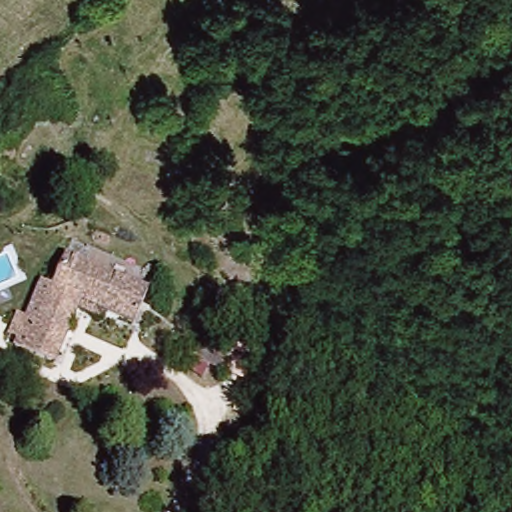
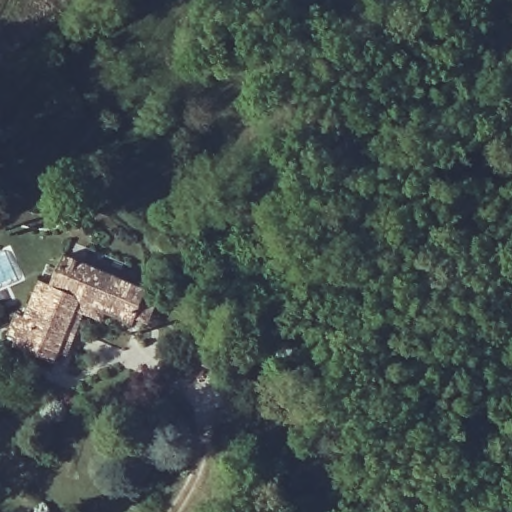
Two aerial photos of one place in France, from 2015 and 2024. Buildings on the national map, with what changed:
unchanged [(54,363),(17,345),(47,282),(55,286),(70,260),(149,293),(134,323),(85,299),(54,363)]

